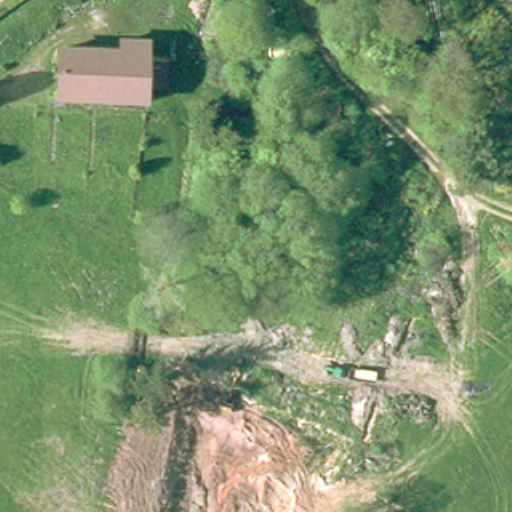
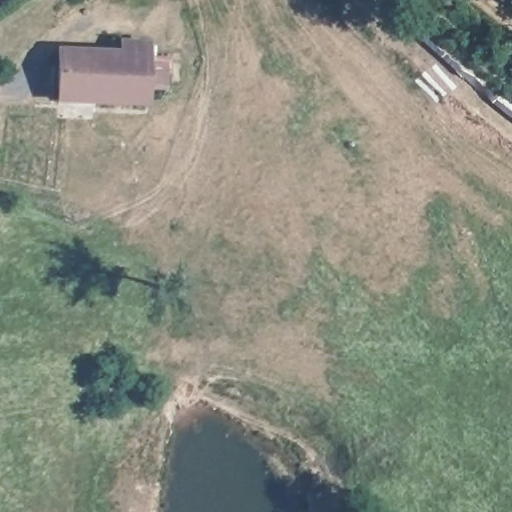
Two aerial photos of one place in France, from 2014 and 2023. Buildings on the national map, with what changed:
unchanged [(114,97),(73,96),(73,47),(126,47),(126,40),(155,40),(152,99),(114,97)]

